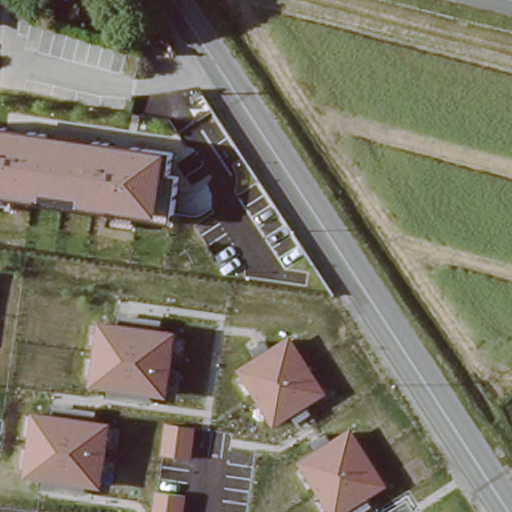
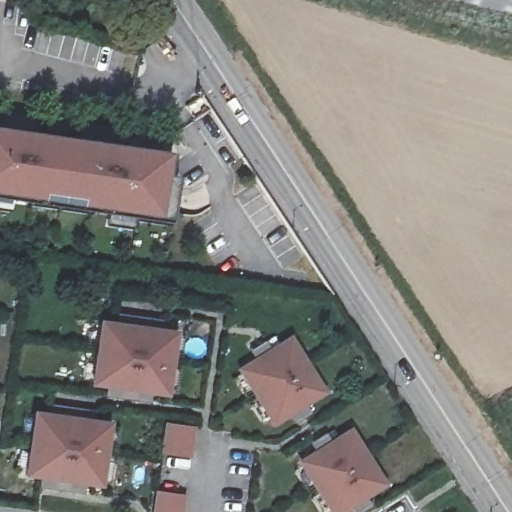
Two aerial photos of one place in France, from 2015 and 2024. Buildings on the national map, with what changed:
unchanged [(169,175),(179,176),(171,223),(141,219),(137,231),(107,227),(110,214),(13,200),(10,212),(0,211),(0,130),(173,155),(169,175)]
unchanged [(178,332),(168,397),(91,385),(103,321),(178,332)]
unchanged [(307,406),(311,414),(296,423),(291,415),(275,424),(240,367),(255,358),(250,351),(265,341),(272,350),(292,337),(327,393),(307,406)]
unchanged [(103,490),(87,487),(85,494),(43,489),(45,479),(24,477),(35,412),(54,415),(54,407),(98,412),(98,421),(111,423),(103,490)]
unchanged [(191,458),(162,454),(166,424),(194,427),(191,458)]
unchanged [(387,488),(369,499),(373,506),(363,512),(353,512),(352,511),(350,512),(328,512),(299,464),(317,453),(311,444),(327,434),(332,440),(353,430),(387,488)]
unchanged [(182,512),(154,512),(158,491),(184,495),(182,512)]

